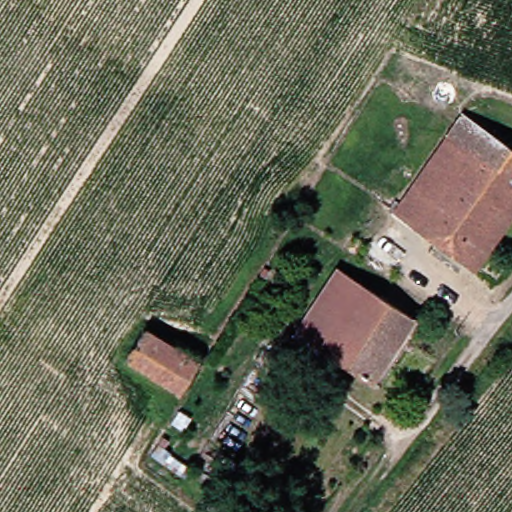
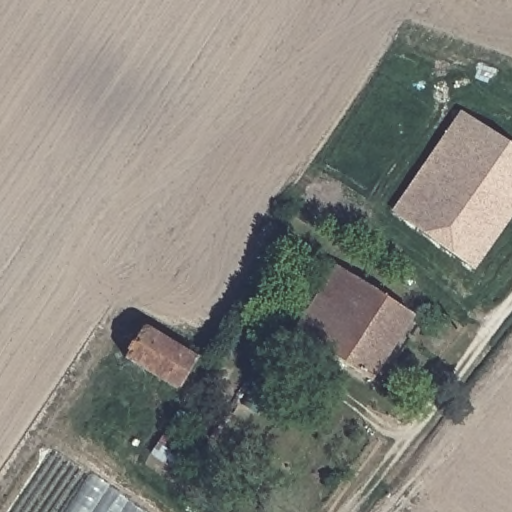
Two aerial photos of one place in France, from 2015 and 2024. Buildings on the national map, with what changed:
unchanged [(386,213),(453,115),(512,158),(512,203),(508,209),(466,268),(455,261),(386,213)]
unchanged [(301,313),(332,264),(407,315),(365,377),(310,341),(291,328),(301,313)]
unchanged [(185,356),(170,386),(116,354),(136,324),(185,356)]
new [(90,473),(144,512),(64,512),(90,473)]

